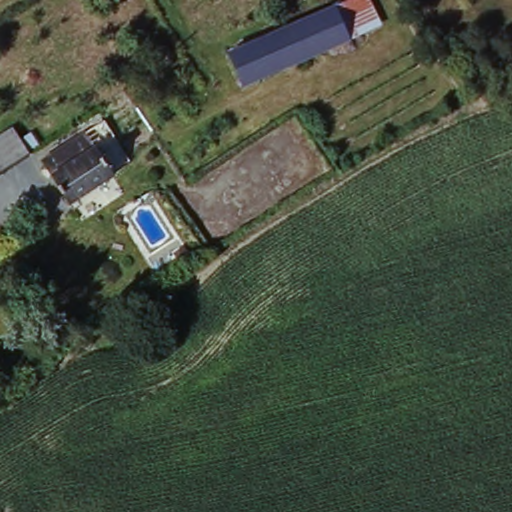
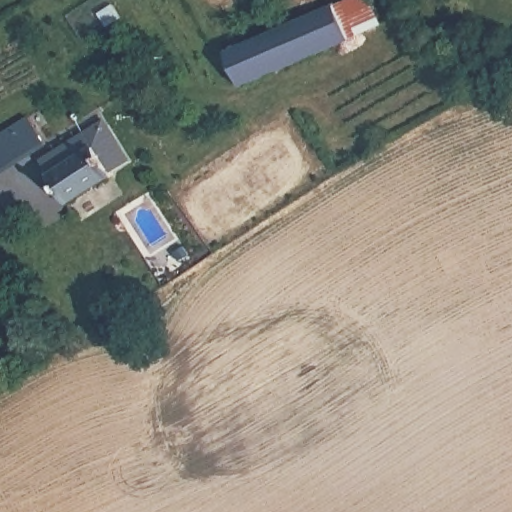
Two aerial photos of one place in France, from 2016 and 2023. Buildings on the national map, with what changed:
unchanged [(313,18),(308,7),(325,0),(366,0),(378,30),(242,91),(225,56),(313,18)]
unchanged [(0,170),(0,135),(14,126),(27,153),(0,170)]
unchanged [(91,140),(116,182),(71,208),(48,166),(91,140)]

